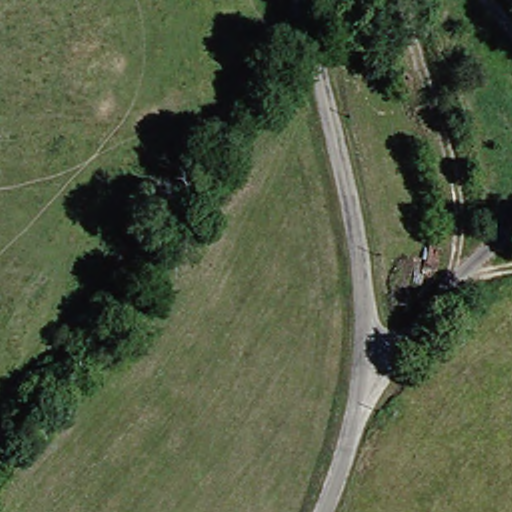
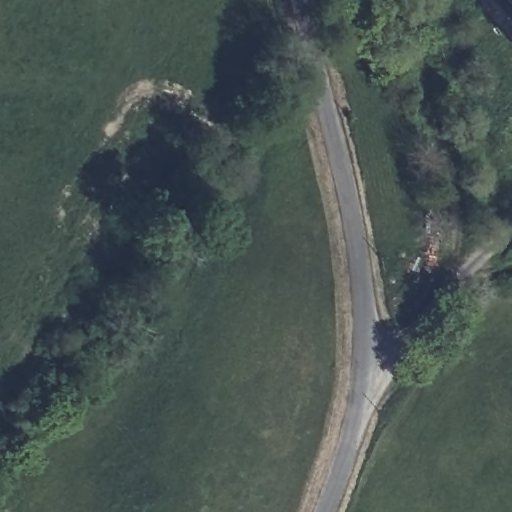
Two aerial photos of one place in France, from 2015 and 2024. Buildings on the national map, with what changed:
[]

